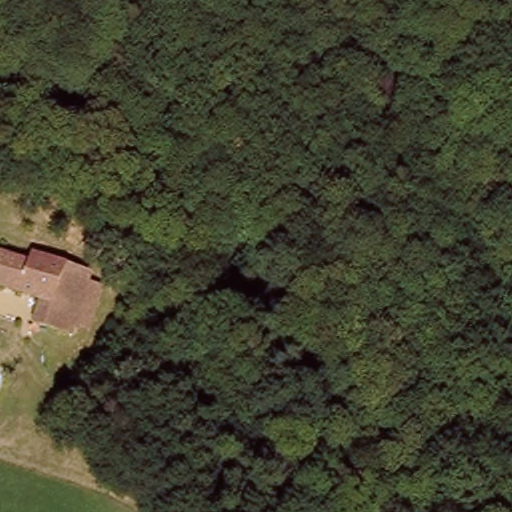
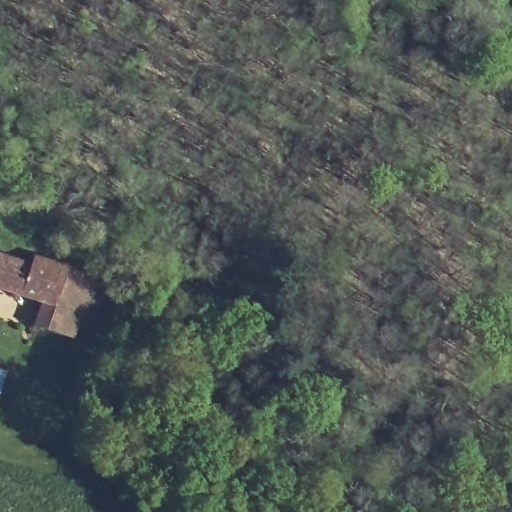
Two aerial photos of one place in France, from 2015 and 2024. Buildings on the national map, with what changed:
unchanged [(0,259),(39,270),(40,265),(97,281),(85,318),(46,306),(0,293),(0,259)]
unchanged [(85,318),(79,342),(39,330),(46,306),(85,318)]

